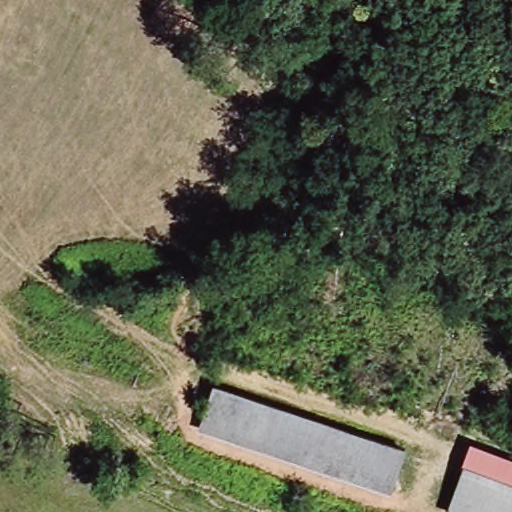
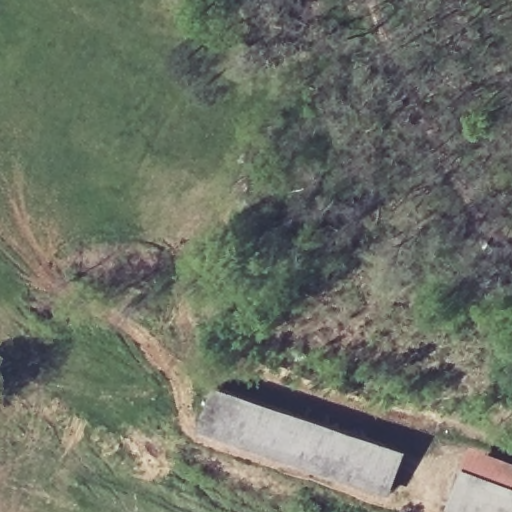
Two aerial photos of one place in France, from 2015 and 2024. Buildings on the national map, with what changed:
unchanged [(199,422),(206,406),(213,385),(218,387),(399,446),(387,480),(385,485),(356,475),(199,422)]
unchanged [(512,461),(512,489),(462,470),(472,446),(512,461)]
unchanged [(447,511),(453,495),(462,470),(512,489),(512,512),(448,512),(447,511)]

